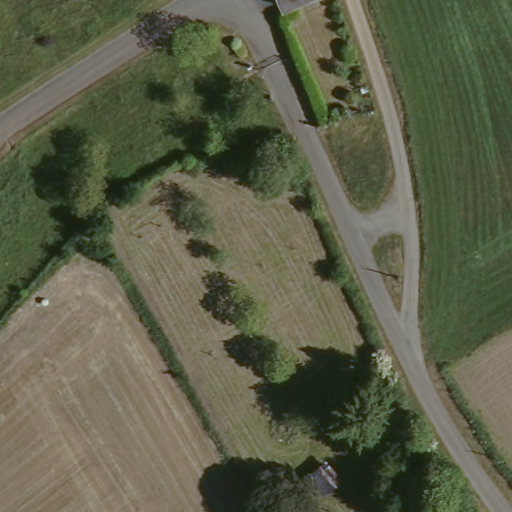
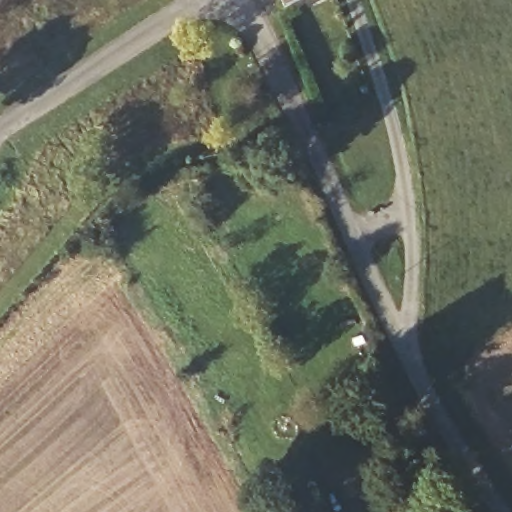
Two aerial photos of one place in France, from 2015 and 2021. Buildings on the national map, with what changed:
unchanged [(281,0),(288,0),(282,2),(281,0)]

